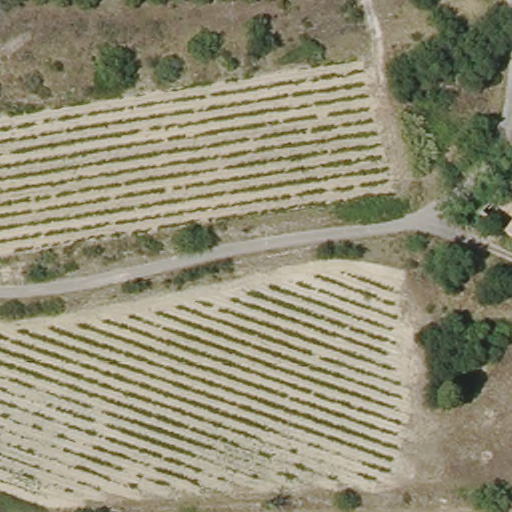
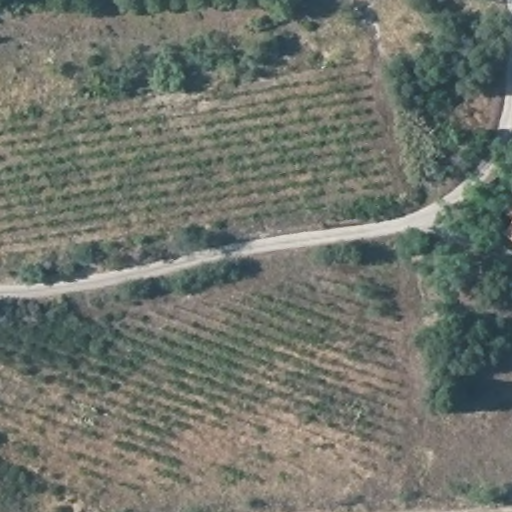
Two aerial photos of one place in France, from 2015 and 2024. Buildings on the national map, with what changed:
unchanged [(512,226),(512,238),(506,234),(512,226)]

